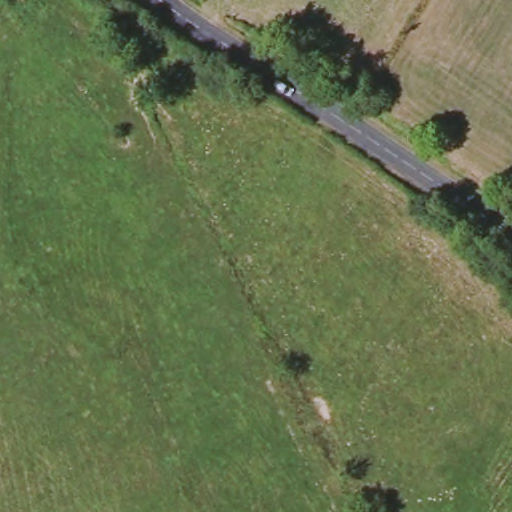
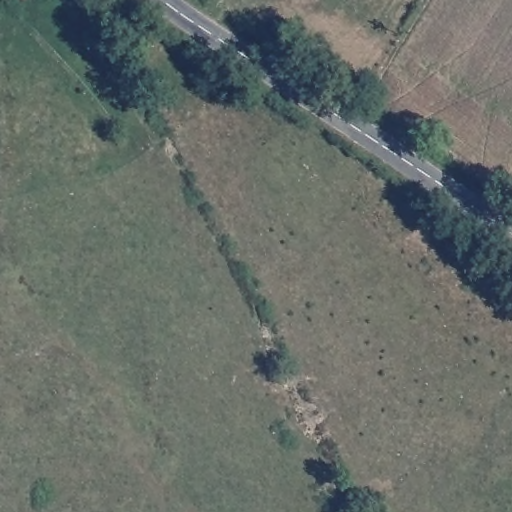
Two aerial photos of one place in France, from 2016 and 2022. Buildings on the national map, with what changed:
unchanged [(11,0),(28,0),(21,9),(11,0)]

